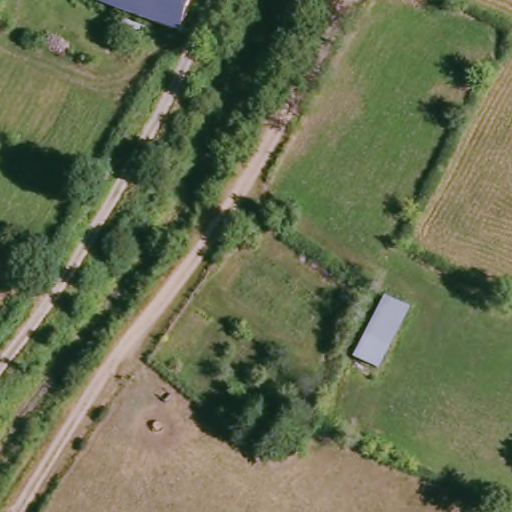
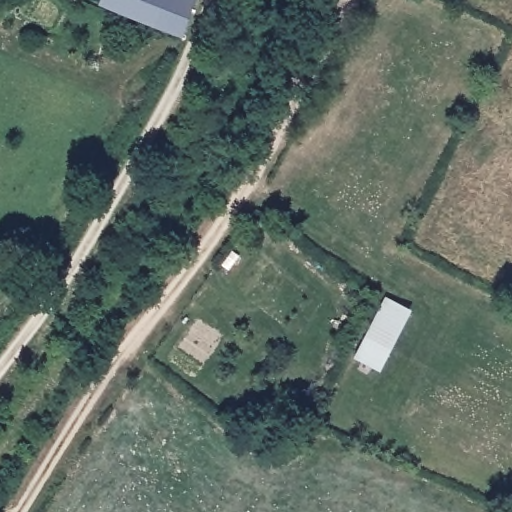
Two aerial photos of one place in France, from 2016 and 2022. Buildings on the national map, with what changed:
unchanged [(177,33),(106,9),(109,0),(193,0),(177,33)]
unchanged [(389,297),(415,310),(384,374),(357,364),(389,297)]

